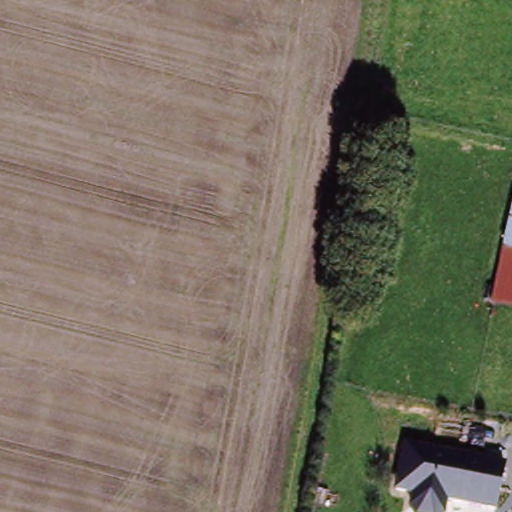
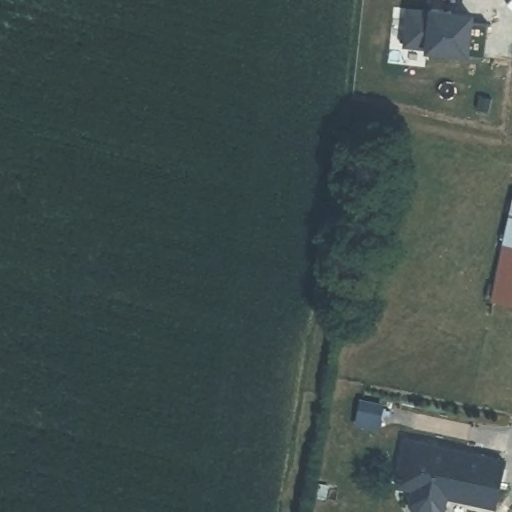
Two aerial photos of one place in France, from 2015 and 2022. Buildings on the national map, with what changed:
new [(430,10),(431,7),(474,10),(473,21),(487,22),(485,55),(405,48),(408,8),(430,10)]
unchanged [(512,206),(512,297),(493,293),(508,223),(512,206)]
unchanged [(495,508),(448,498),(447,510),(444,512),(416,512),(410,505),(412,491),(395,487),(407,445),(505,464),(495,508)]

